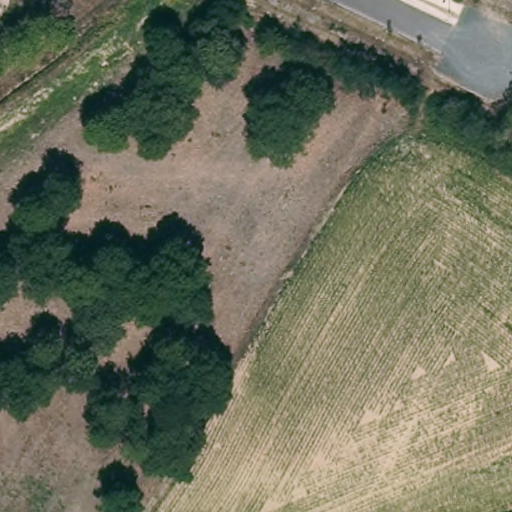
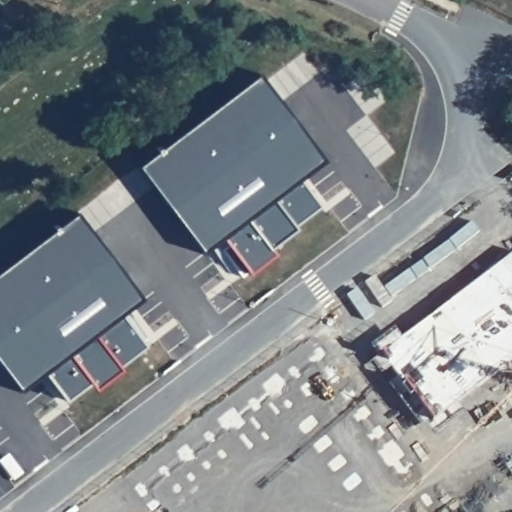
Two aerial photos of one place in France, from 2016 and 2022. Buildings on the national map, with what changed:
new [(259,73),(326,160),(301,180),(320,206),(294,226),(297,229),(271,249),(275,254),(249,274),(248,272),(242,277),(221,249),(227,244),(223,239),(203,254),(136,166),(259,73)]
new [(144,299),(123,315),(146,346),(120,366),(122,369),(96,390),(91,383),(66,401),(45,374),(21,392),(0,364),(0,270),(77,212),(144,299)]

